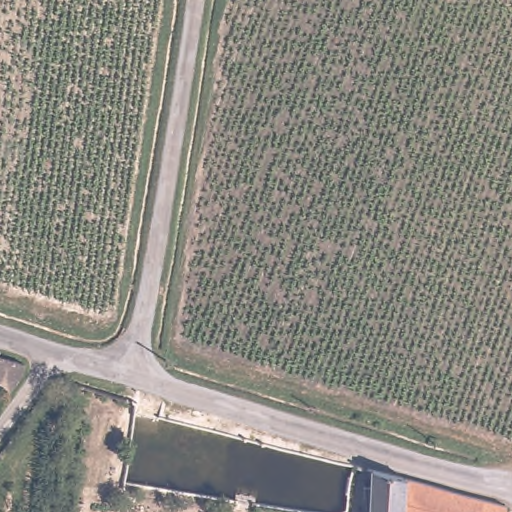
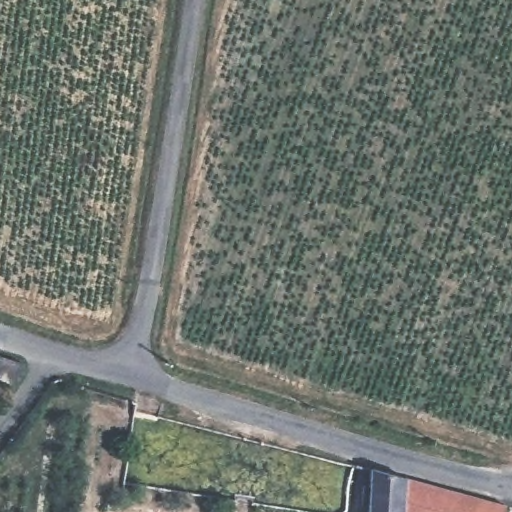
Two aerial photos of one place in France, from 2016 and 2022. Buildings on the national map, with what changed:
unchanged [(22,374),(4,396),(0,394),(0,358),(20,364),(22,374)]
unchanged [(368,469),(402,480),(402,512),(366,512),(368,469)]
unchanged [(402,480),(505,507),(504,512),(402,512),(402,480)]

